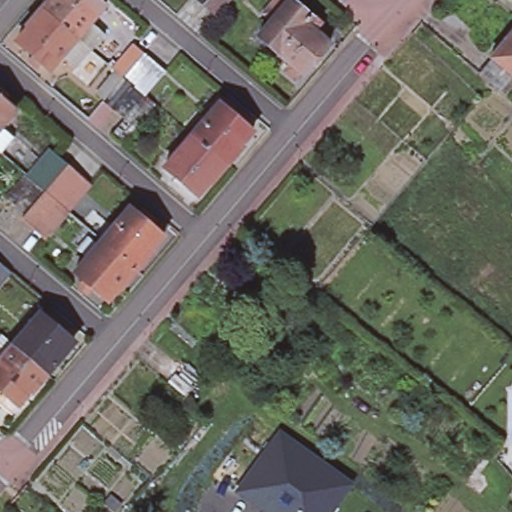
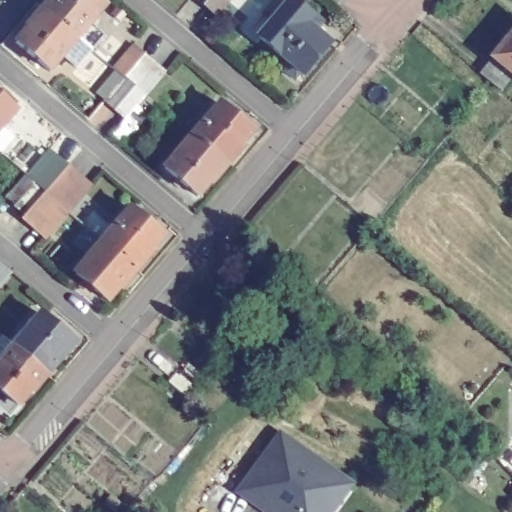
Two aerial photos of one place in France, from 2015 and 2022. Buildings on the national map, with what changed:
unchanged [(12,41),(24,27),(22,25),(37,8),(44,0),(93,0),(99,4),(85,21),(97,33),(85,48),(71,64),(57,53),(44,69),(12,41)]
unchanged [(184,4),(186,0),(203,0),(193,11),(184,4)]
unchanged [(214,8),(207,0),(234,0),(222,14),(214,8)]
unchanged [(285,70),(290,64),(257,38),(290,0),(310,17),(305,24),(329,44),(304,75),(300,71),(294,78),(285,70)]
unchanged [(493,57),(492,56),(512,31),(512,73),(500,87),(480,72),(493,57)]
unchanged [(129,123),(110,107),(92,91),(110,70),(130,49),(148,64),(159,73),(140,94),(147,101),(129,123)]
unchanged [(9,106),(0,116),(0,99),(9,106)]
unchanged [(219,104),(252,131),(240,145),(242,147),(227,164),(192,134),(219,104)]
unchanged [(7,133),(0,142),(0,127),(7,133)]
unchanged [(227,164),(211,182),(209,180),(196,194),(164,166),(192,134),(227,164)]
unchanged [(24,175),(42,154),(62,169),(65,166),(87,185),(65,210),(43,235),(21,217),(24,214),(5,197),(24,175)]
unchanged [(100,240),(127,209),(160,236),(149,250),(150,252),(135,269),(100,240)]
unchanged [(119,288),(117,285),(105,299),(73,272),(100,240),(135,269),(119,288)]
unchanged [(0,287),(0,263),(11,273),(0,287)]
unchanged [(12,344),(39,313),(70,340),(57,354),(60,356),(45,373),(12,344)]
unchanged [(0,400),(0,357),(12,344),(45,373),(29,391),(27,390),(15,404),(10,409),(0,400)]
unchanged [(239,489),(277,436),(280,432),(299,446),(328,467),(350,483),(329,512),(271,512),(239,489)]

